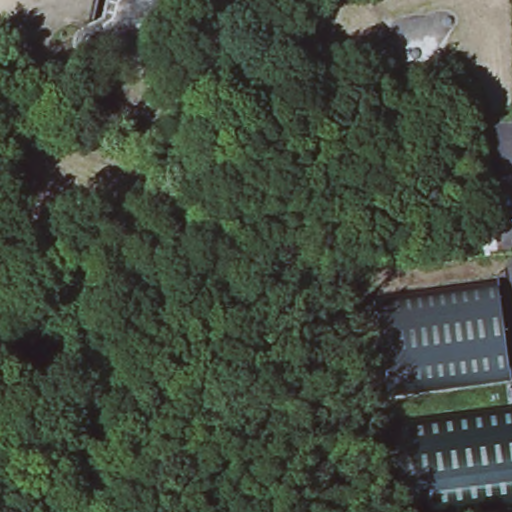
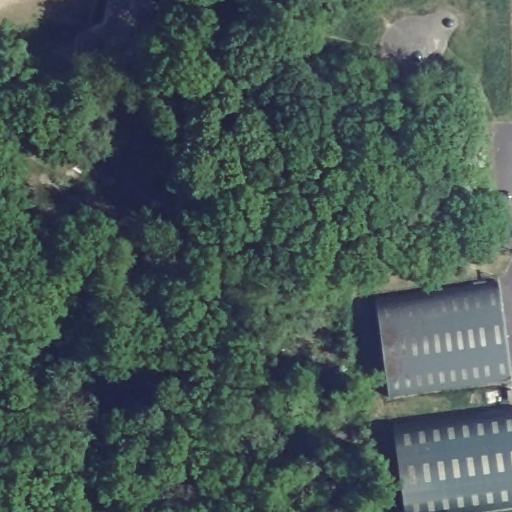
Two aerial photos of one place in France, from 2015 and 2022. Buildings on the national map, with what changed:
unchanged [(96,0),(186,0),(195,27),(80,67),(70,41),(100,21),(96,0)]
unchanged [(374,296),(455,285),(496,279),(497,286),(510,379),(510,380),(387,396),(374,296)]
unchanged [(398,512),(390,429),(512,412),(512,501),(420,512),(398,512)]

